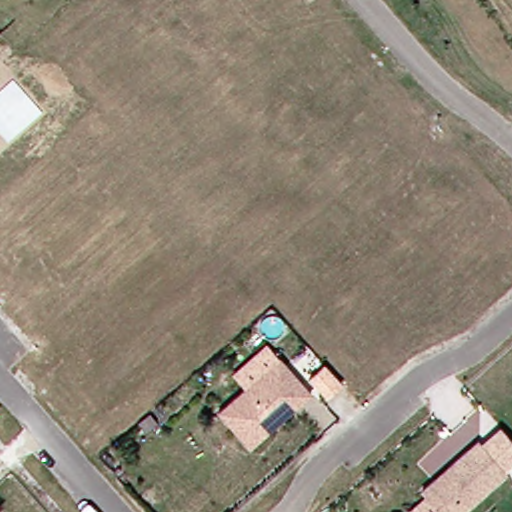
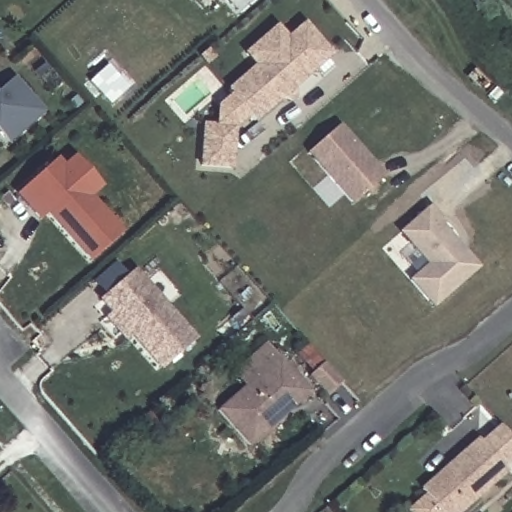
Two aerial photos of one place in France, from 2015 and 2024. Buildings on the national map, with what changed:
new [(223,0),(226,0),(225,2),(223,0)]
new [(299,25),(325,56),(250,121),(224,91),(299,25)]
unchanged [(46,112),(7,146),(0,137),(0,90),(14,77),(46,112)]
new [(333,127),(379,179),(348,205),(303,153),(333,127)]
new [(199,129),(230,130),(228,170),(197,169),(199,129)]
new [(102,189),(91,199),(124,235),(89,264),(47,217),(40,222),(16,196),(56,159),(63,166),(75,157),(102,189)]
new [(426,207),(437,219),(433,222),(473,268),(428,307),(405,281),(415,272),(396,252),(406,244),(395,232),(426,207)]
new [(97,302),(131,272),(190,341),(156,370),(127,337),(121,342),(100,320),(107,313),(97,302)]
new [(293,356),(305,346),(321,364),(338,383),(323,397),(305,378),(310,375),(293,356)]
unchanged [(214,409),(275,356),(307,392),(245,445),(214,409)]
unchanged [(417,488),(474,438),(502,470),(455,512),(438,512),(417,488)]

